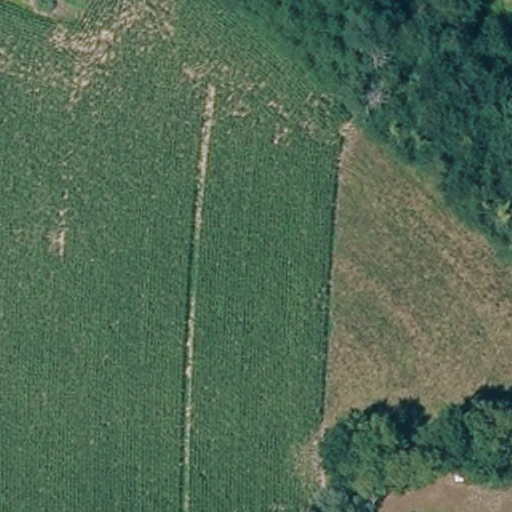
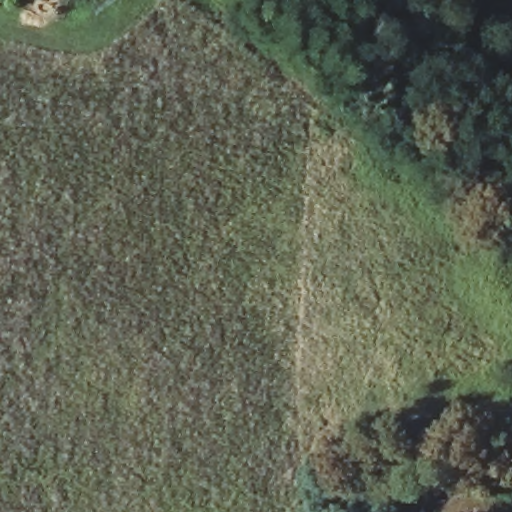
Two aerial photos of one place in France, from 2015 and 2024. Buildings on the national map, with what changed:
[]

